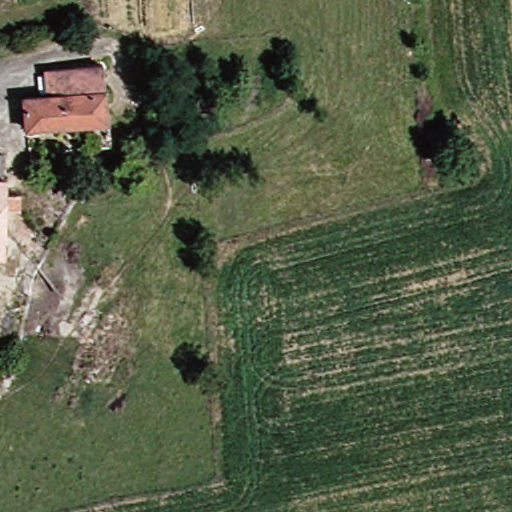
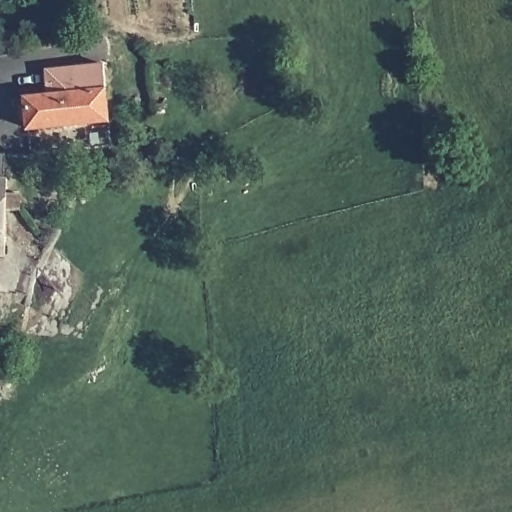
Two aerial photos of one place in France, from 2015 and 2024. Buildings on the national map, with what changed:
unchanged [(108,121),(26,129),(23,98),(44,95),(43,65),(72,62),(102,59),(108,121)]
unchanged [(95,131),(109,129),(111,149),(97,150),(95,131)]
unchanged [(9,178),(11,189),(27,191),(25,205),(10,207),(8,257),(0,256),(0,177),(9,178)]

